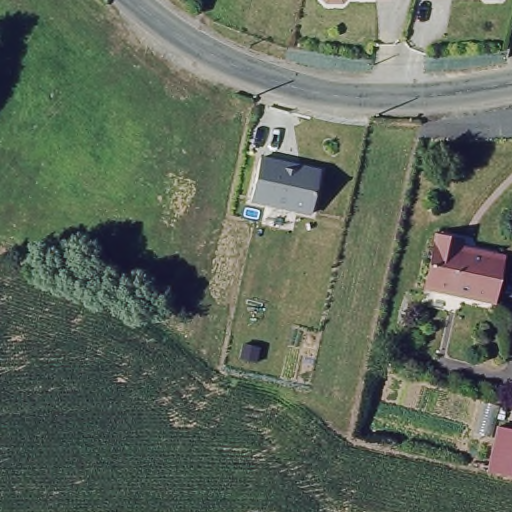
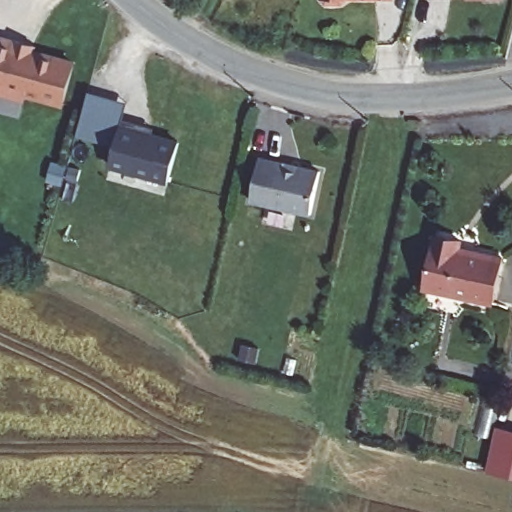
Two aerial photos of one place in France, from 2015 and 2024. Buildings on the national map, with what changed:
unchanged [(327,4),(324,0),(348,0),(346,4),(327,4)]
new [(37,50),(75,60),(65,108),(27,98),(26,102),(0,95),(0,37),(37,47),(37,50)]
new [(127,101),(123,120),(156,128),(155,132),(179,140),(167,184),(110,167),(116,146),(78,136),(90,91),(127,101)]
unchanged [(323,167),(312,216),(252,202),(262,154),(323,167)]
new [(52,167),(66,170),(64,179),(50,176),(52,167)]
unchanged [(432,232),(457,238),(457,245),(499,254),(489,300),(420,284),(432,232)]
new [(243,342),(260,346),(257,360),(240,356),(243,342)]
unchanged [(488,472),(498,427),(512,429),(512,477),(488,472)]

